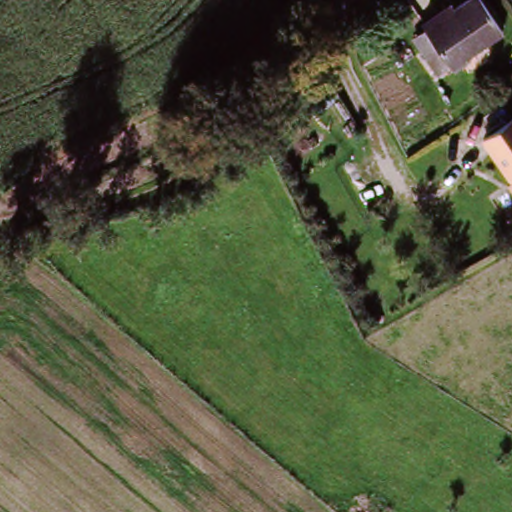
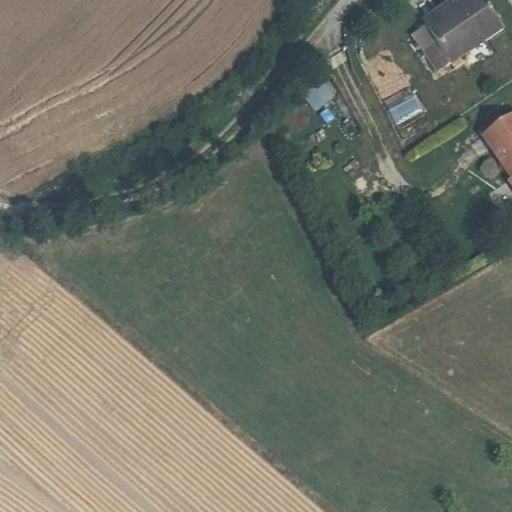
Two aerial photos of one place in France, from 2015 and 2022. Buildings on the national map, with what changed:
unchanged [(478,0),(501,34),(447,71),(421,33),(469,0),(478,0)]
unchanged [(512,193),(507,187),(511,183),(482,140),(512,121),(512,193)]

